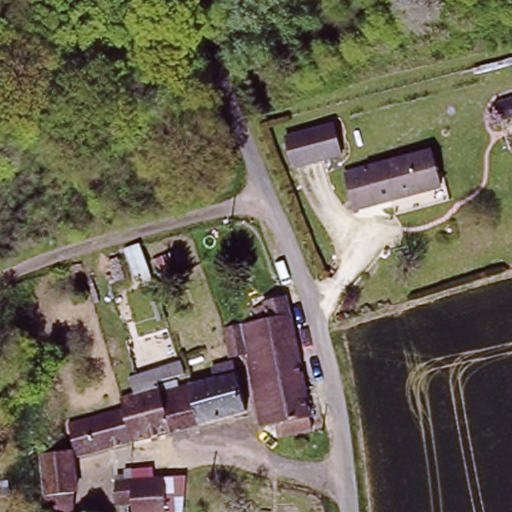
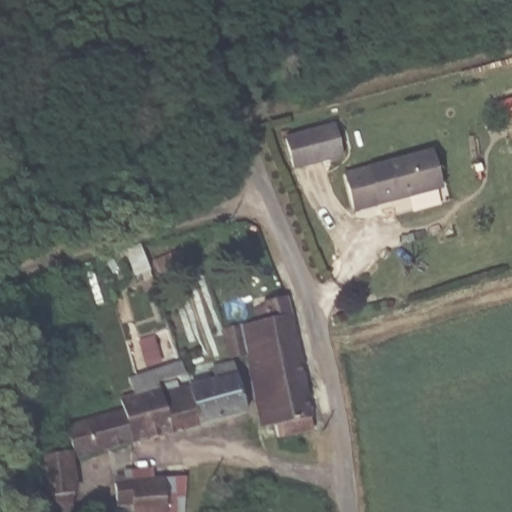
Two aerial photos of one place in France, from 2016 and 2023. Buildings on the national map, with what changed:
unchanged [(287,143),(333,130),(341,157),(296,171),(287,143)]
unchanged [(343,176),(428,155),(436,190),(351,211),(343,176)]
unchanged [(315,420),(306,422),(308,431),(280,437),(278,426),(266,428),(253,351),(236,355),(234,343),(232,330),(249,327),(265,324),(264,312),(271,311),(271,305),(292,300),(315,420)]
unchanged [(218,377),(216,365),(233,361),(247,411),(201,425),(188,386),(218,377)]
unchanged [(188,386),(201,425),(171,432),(161,395),(188,386)]
unchanged [(160,391),(161,395),(171,432),(133,443),(124,410),(122,402),(160,391)]
unchanged [(124,410),(133,443),(79,458),(70,426),(124,410)]
unchanged [(71,451),(76,492),(46,496),(40,455),(71,451)]
unchanged [(135,512),(134,503),(120,504),(119,483),(132,482),(166,480),(168,512),(135,512)]
unchanged [(46,500),(73,500),(73,512),(40,512),(40,499),(46,500)]

